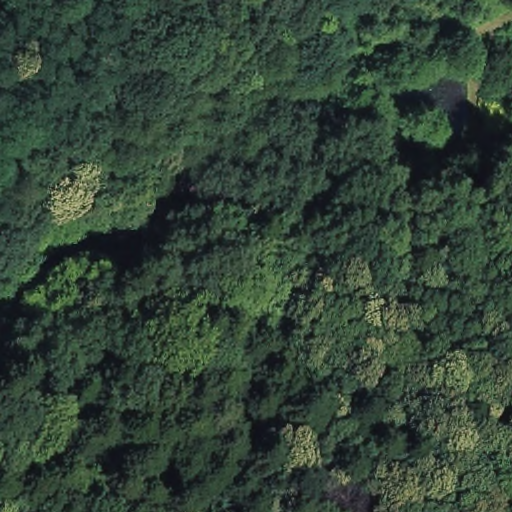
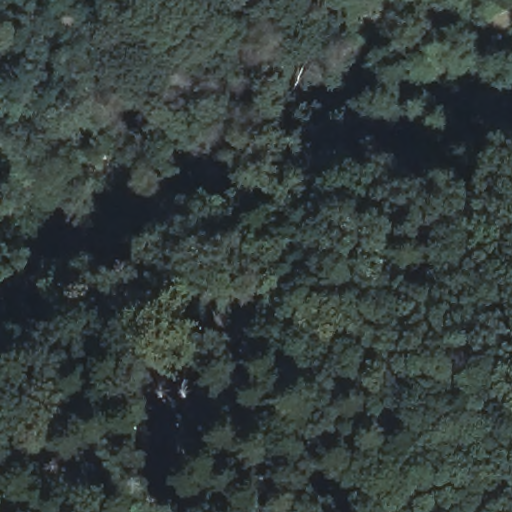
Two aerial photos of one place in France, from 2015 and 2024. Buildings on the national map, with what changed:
unchanged [(118,71),(103,93),(92,85),(107,65),(118,71)]

